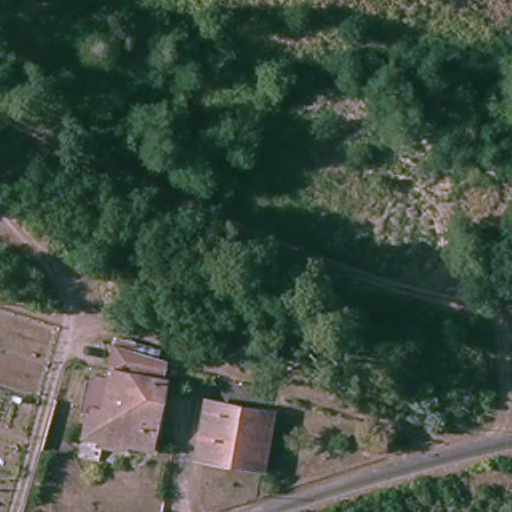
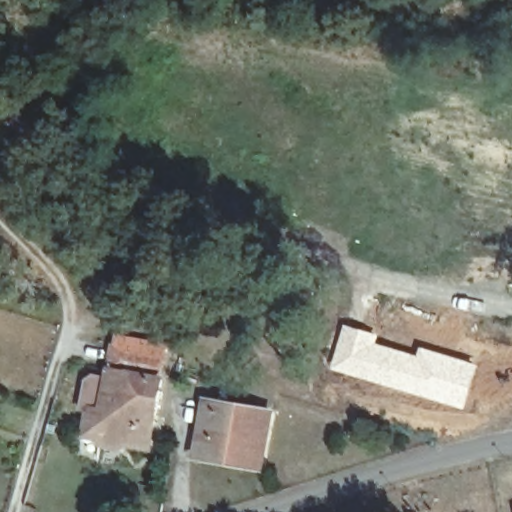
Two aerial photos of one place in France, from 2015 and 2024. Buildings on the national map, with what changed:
new [(345,324),(379,334),(376,343),(416,354),(419,346),(479,363),(465,410),(329,369),(345,324)]
unchanged [(164,360),(161,382),(110,371),(114,345),(164,360)]
unchanged [(155,420),(150,449),(120,444),(119,449),(98,446),(99,440),(84,438),(88,411),(103,413),(110,371),(161,382),(155,420)]
unchanged [(266,467),(201,456),(209,403),(274,414),(266,467)]

